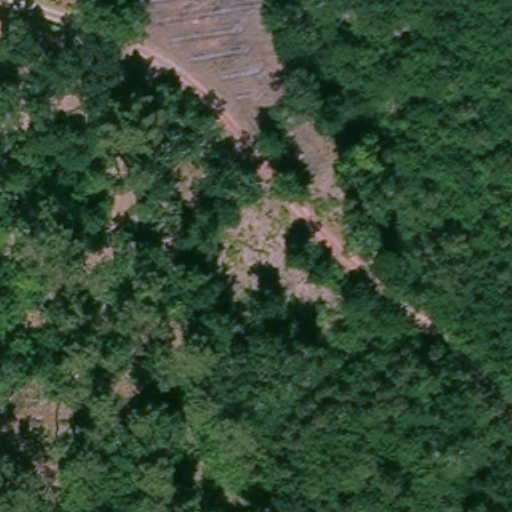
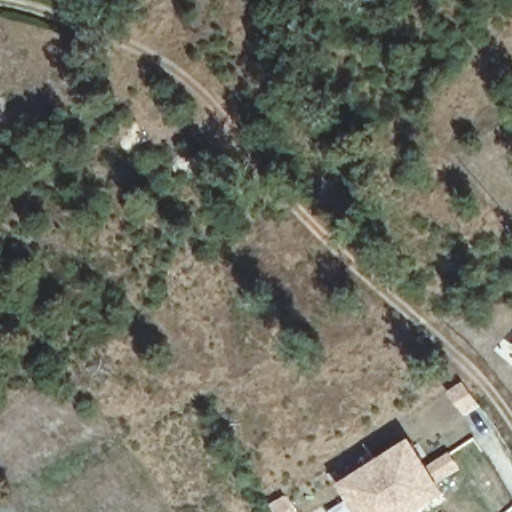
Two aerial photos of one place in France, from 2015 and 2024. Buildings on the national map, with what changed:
new [(512,348),(511,347),(512,346),(512,348)]
new [(465,385),(480,408),(464,418),(450,395),(465,385)]
new [(430,471),(452,456),(461,470),(439,485),(446,497),(424,512),(358,512),(343,489),(413,444),(430,471)]

